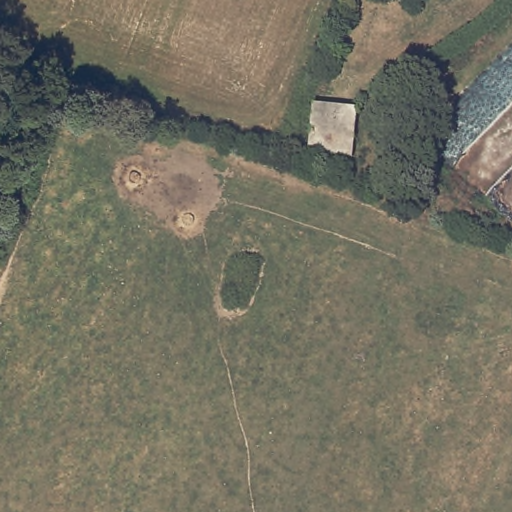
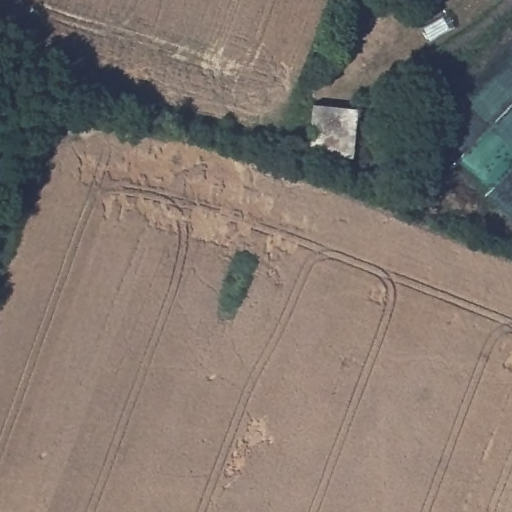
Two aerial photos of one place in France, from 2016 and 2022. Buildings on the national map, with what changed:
unchanged [(350,165),(311,160),(317,112),(357,118),(350,165)]

